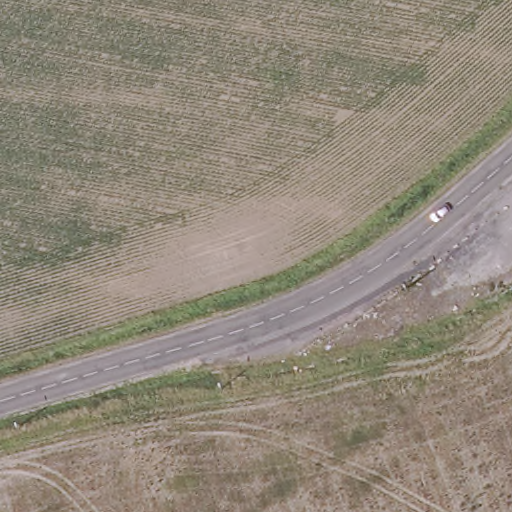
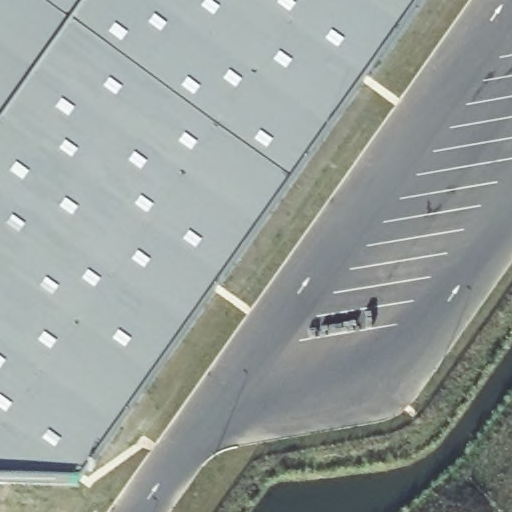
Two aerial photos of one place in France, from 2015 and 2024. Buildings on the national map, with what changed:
new [(102,498),(0,492),(0,0),(449,0),(102,498)]

